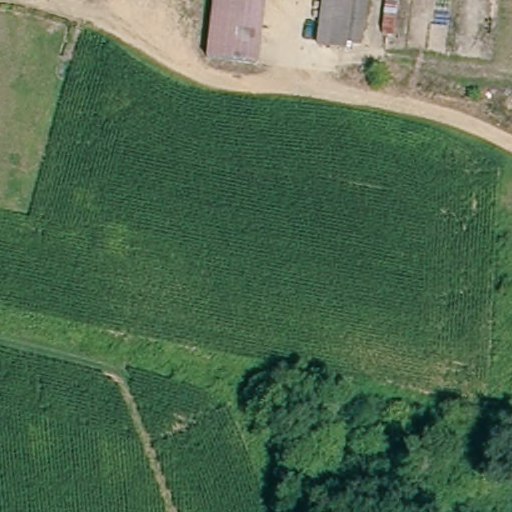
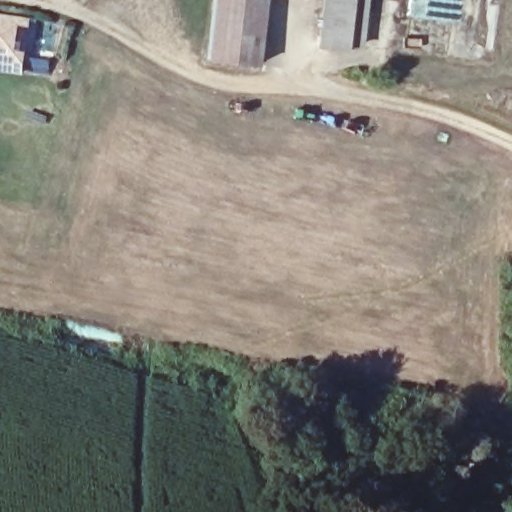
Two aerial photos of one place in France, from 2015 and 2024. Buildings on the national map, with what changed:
unchanged [(207,60),(214,0),(266,0),(258,67),(207,60)]
unchanged [(366,0),(361,46),(345,45),(345,50),(318,47),(324,0),(366,0)]
unchanged [(397,0),(390,50),(379,50),(385,0),(397,0)]
new [(33,20),(26,77),(0,73),(0,15),(33,20)]

